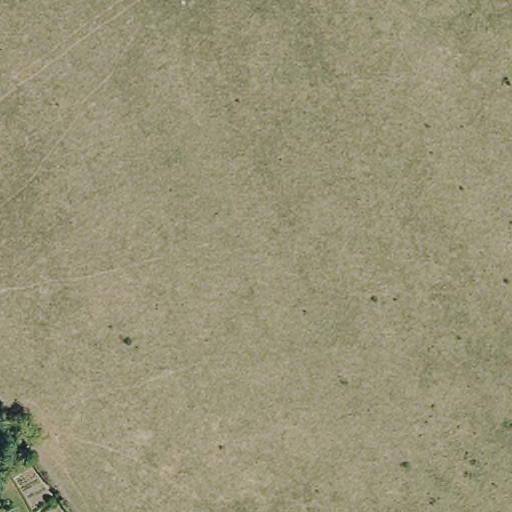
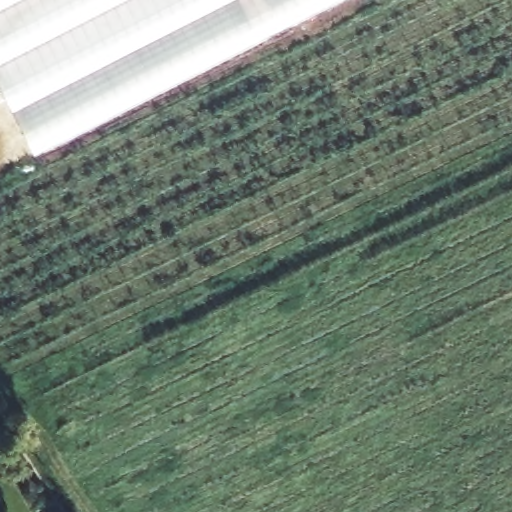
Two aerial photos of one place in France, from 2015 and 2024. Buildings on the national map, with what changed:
new [(0,91),(0,0),(340,0),(33,155),(0,91)]

